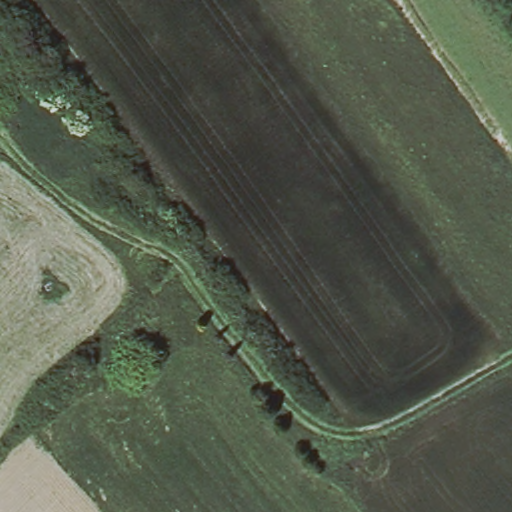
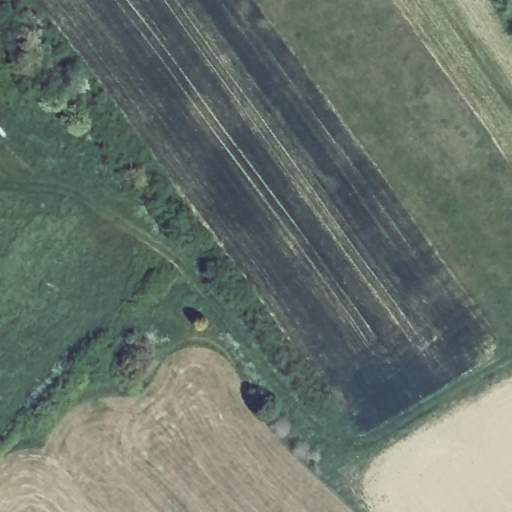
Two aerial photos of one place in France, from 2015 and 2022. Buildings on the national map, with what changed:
unchanged [(182,323),(169,335),(161,329),(174,316),(182,323)]

